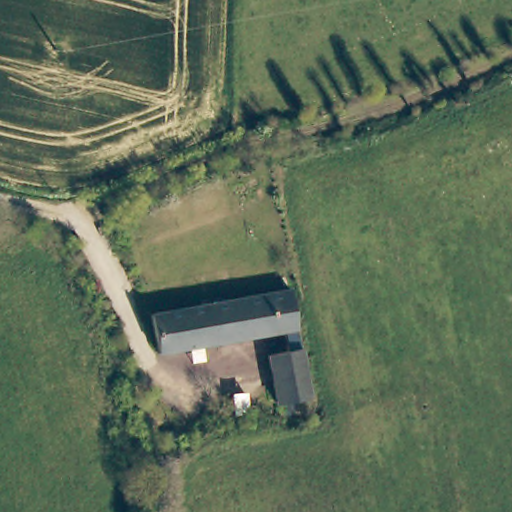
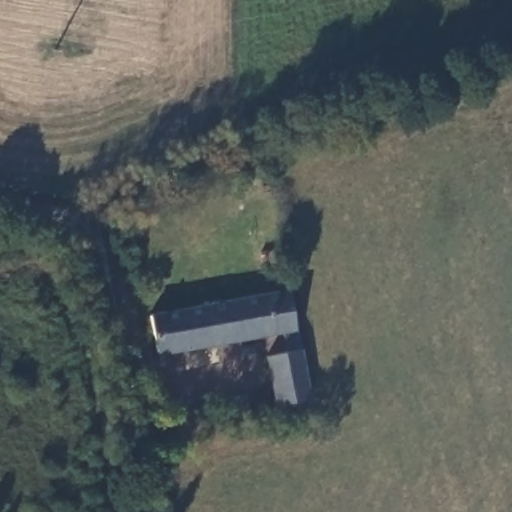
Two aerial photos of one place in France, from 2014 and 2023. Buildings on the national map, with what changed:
unchanged [(277,403),(262,337),(159,359),(149,318),(287,291),(306,399),(277,403)]
unchanged [(168,460),(173,450),(183,455),(178,465),(168,460)]

